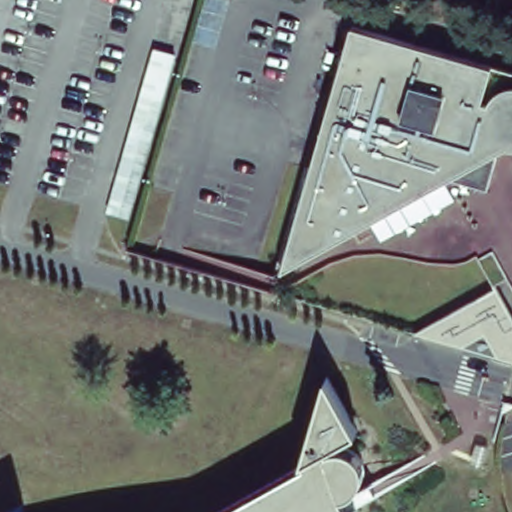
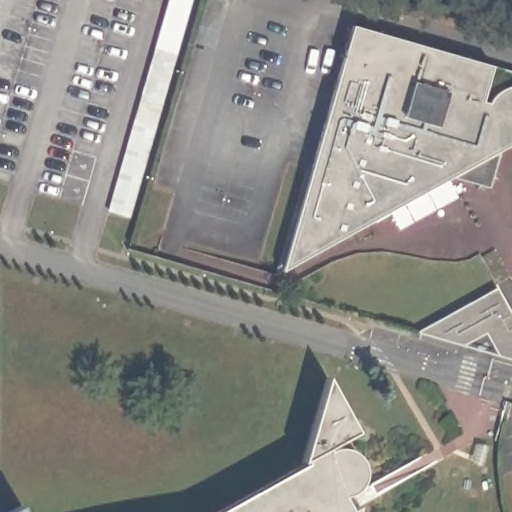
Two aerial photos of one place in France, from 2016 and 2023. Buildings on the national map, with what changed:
unchanged [(351,24),(488,63),(478,95),(490,99),(495,93),(502,89),(510,87),(512,87),(512,145),(507,144),(490,139),(478,182),(441,170),(437,178),(433,184),(427,189),(421,192),(415,194),(409,196),(398,199),(388,202),(381,204),(379,204),(372,208),(371,208),(363,213),(368,222),(282,266),(308,178),(351,24)]
unchanged [(501,283),(512,303),(512,356),(493,352),(483,332),(462,344),(411,329),(501,283)]
unchanged [(302,465),(299,459),(294,461),(318,372),(350,431),(317,448),(321,454),(325,452),(329,450),(333,449),(339,449),(344,451),(349,455),(352,458),(356,462),(358,467),(359,474),(358,480),(356,487),(352,493),(349,496),(346,499),(346,501),(368,489),(371,497),(349,508),(351,511),(355,509),(355,512),(215,512),(302,465)]
unchanged [(0,505),(0,501),(19,487),(26,512),(2,512),(0,505)]

